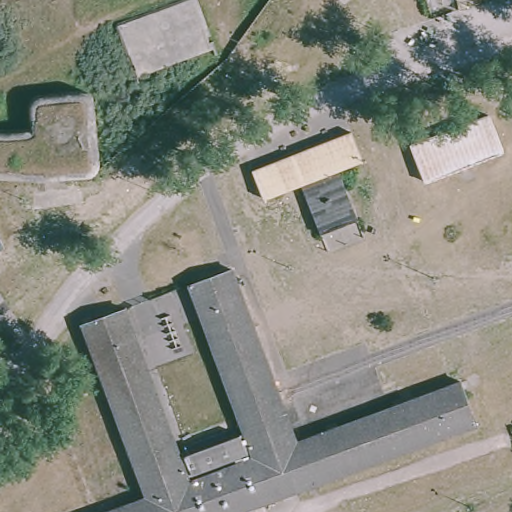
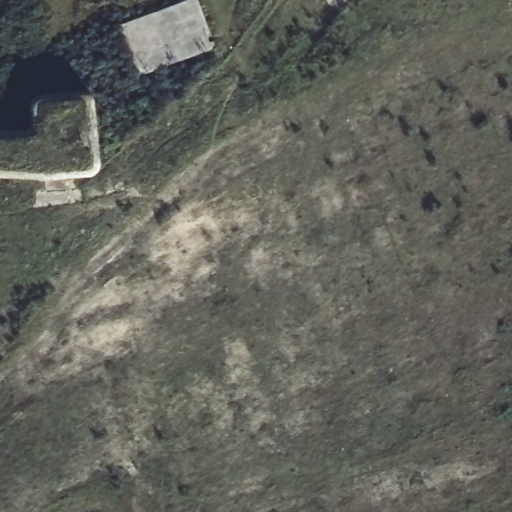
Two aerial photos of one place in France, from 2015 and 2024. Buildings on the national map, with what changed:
unchanged [(212,48),(137,75),(118,25),(188,0),(193,0),(212,48)]
unchanged [(5,134),(33,131),(29,99),(90,92),(97,174),(46,180),(0,177),(0,133),(5,134)]
demolished [(424,182),(411,145),(489,115),(503,152),(424,182)]
demolished [(354,131),(365,161),(341,170),(359,218),(320,233),(301,185),(266,198),(254,168),(354,131)]
demolished [(3,246),(0,247),(0,241),(3,246)]
demolished [(122,308),(186,482),(251,459),(186,284),(229,268),(294,443),(460,383),(476,425),(304,488),(240,512),(107,512),(144,498),(80,323),(122,308)]

